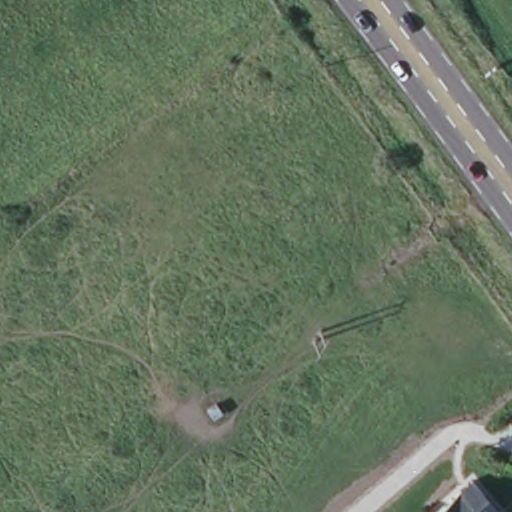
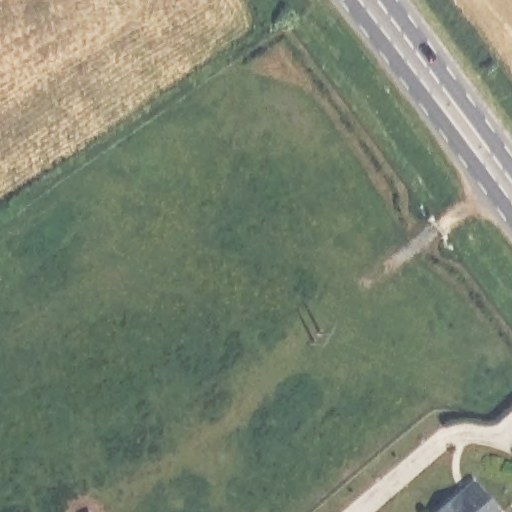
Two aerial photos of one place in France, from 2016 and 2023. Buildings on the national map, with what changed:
unchanged [(489,512),(429,512),(471,485),(489,512)]

